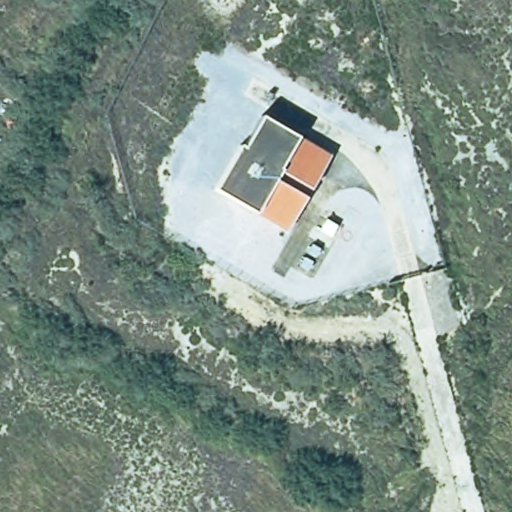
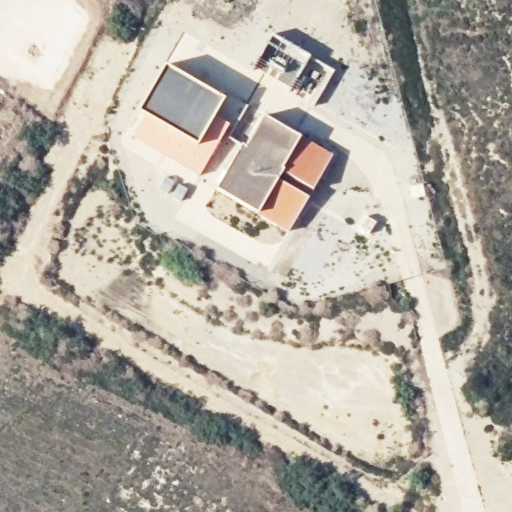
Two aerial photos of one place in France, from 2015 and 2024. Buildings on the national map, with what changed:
new [(223,100),(213,116),(228,125),(199,176),(131,136),(142,117),(134,112),(161,65),(223,100)]
unchanged [(329,155),(289,231),(218,190),(243,142),(247,145),(264,118),(329,155)]

